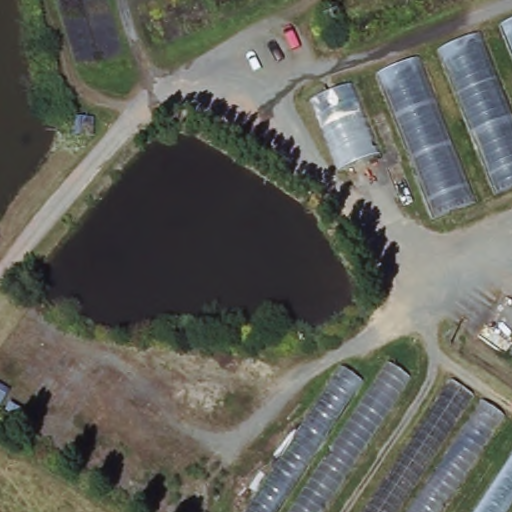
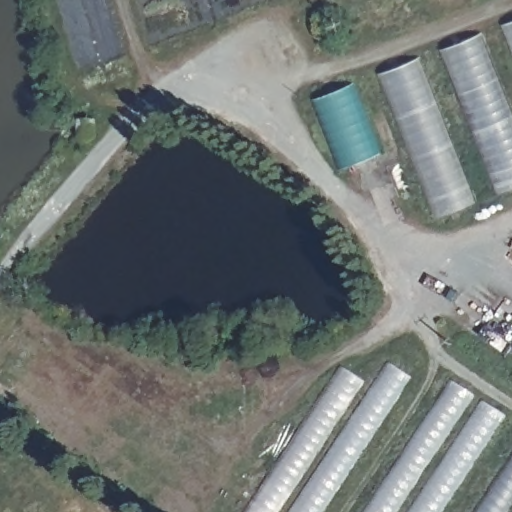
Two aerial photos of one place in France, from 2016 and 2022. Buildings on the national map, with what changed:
unchanged [(512,21),(512,63),(497,27),(512,21)]
unchanged [(477,35),(512,127),(512,188),(492,196),(434,52),(477,35)]
unchanged [(416,58),(470,205),(432,220),(375,75),(416,58)]
unchanged [(350,84),(375,155),(334,169),(308,100),(350,84)]
unchanged [(370,386),(383,363),(410,380),(321,512),(241,512),(337,366),(364,382),(370,386)]
unchanged [(443,512),(363,512),(447,381),(507,418),(443,512)]
unchanged [(512,450),(512,512),(472,512),(512,450)]

